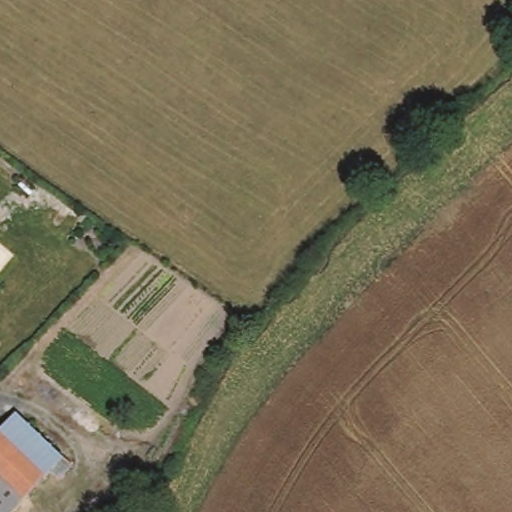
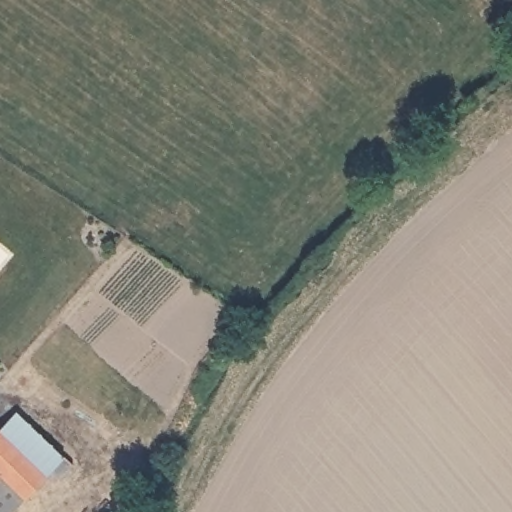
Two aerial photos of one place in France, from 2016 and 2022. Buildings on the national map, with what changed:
unchanged [(0,267),(0,265),(1,266),(0,267)]
unchanged [(18,408),(44,432),(73,460),(58,475),(50,467),(29,489),(36,497),(22,512),(19,512),(13,506),(7,512),(0,512),(0,426),(18,408)]

